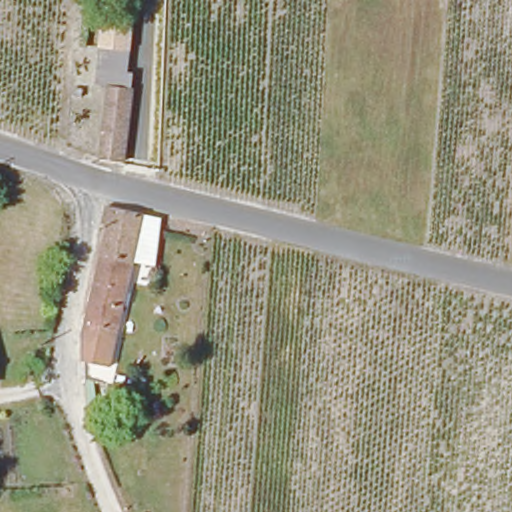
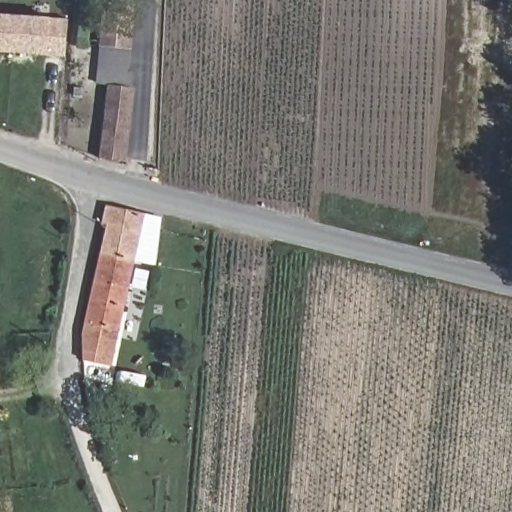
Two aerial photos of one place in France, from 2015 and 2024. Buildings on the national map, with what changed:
new [(0,53),(0,15),(67,19),(65,57),(0,53)]
unchanged [(110,92),(100,90),(109,52),(128,56),(136,58),(129,96),(110,92)]
unchanged [(132,97),(116,167),(93,162),(110,92),(129,96),(132,97)]
unchanged [(152,260),(132,257),(131,265),(97,256),(102,233),(97,228),(101,208),(155,220),(152,260)]
unchanged [(97,256),(131,265),(110,371),(90,370),(77,346),(97,256)]

